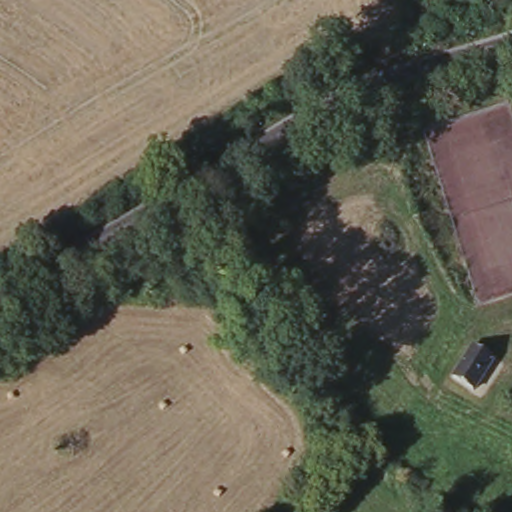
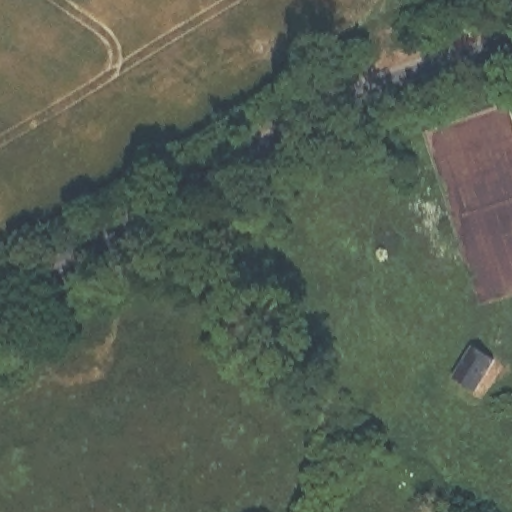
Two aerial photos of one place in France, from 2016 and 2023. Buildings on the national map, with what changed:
unchanged [(472,331),(496,340),(476,394),(451,385),(472,331)]

